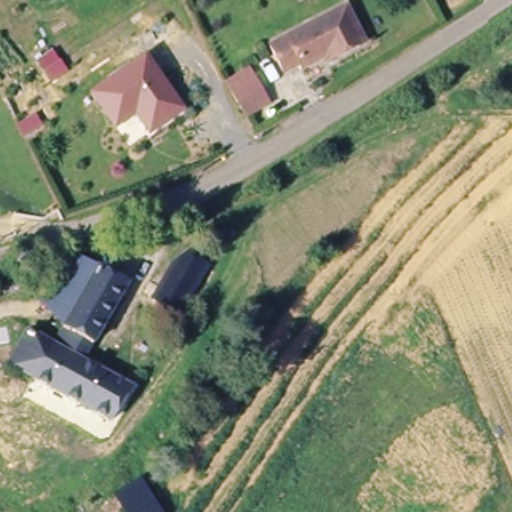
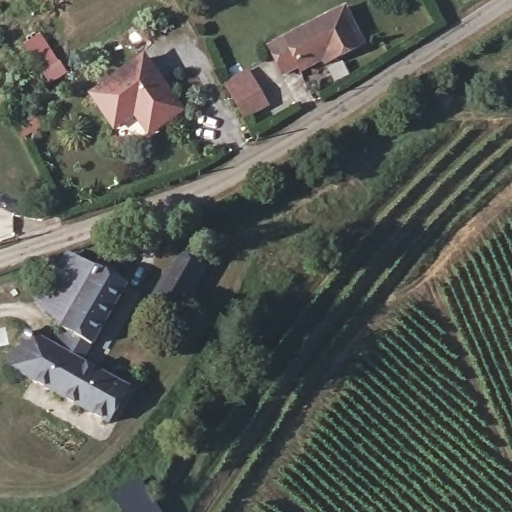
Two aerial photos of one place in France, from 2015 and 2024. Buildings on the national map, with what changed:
unchanged [(342,10),(364,49),(329,68),(322,57),(302,67),(297,61),(277,72),(266,49),(342,10)]
unchanged [(183,111),(127,150),(90,98),(146,58),(183,111)]
unchanged [(247,71),(267,109),(247,122),(226,81),(247,71)]
unchanged [(172,267),(186,257),(206,269),(177,317),(151,302),(172,267)]
unchanged [(60,327),(33,295),(67,258),(95,269),(85,285),(60,327)]
unchanged [(94,416),(61,396),(7,363),(25,334),(47,348),(60,327),(85,285),(95,269),(97,265),(124,280),(77,363),(125,391),(106,422),(94,416)]
unchanged [(151,512),(118,512),(113,505),(137,490),(151,512)]

